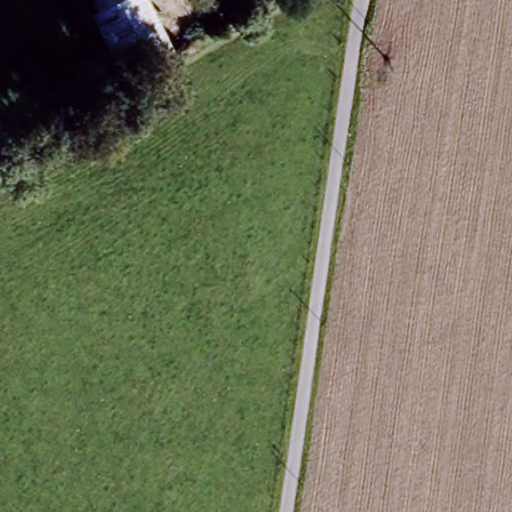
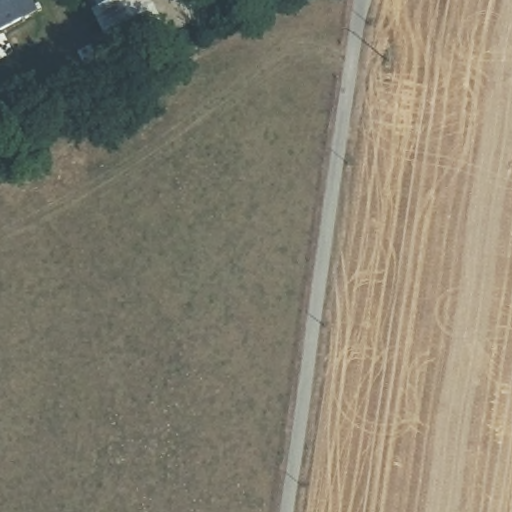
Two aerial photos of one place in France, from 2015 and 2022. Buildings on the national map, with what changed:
new [(0,33),(0,0),(32,0),(39,16),(0,33)]
unchanged [(97,24),(93,16),(127,0),(147,0),(175,58),(124,82),(97,24)]

